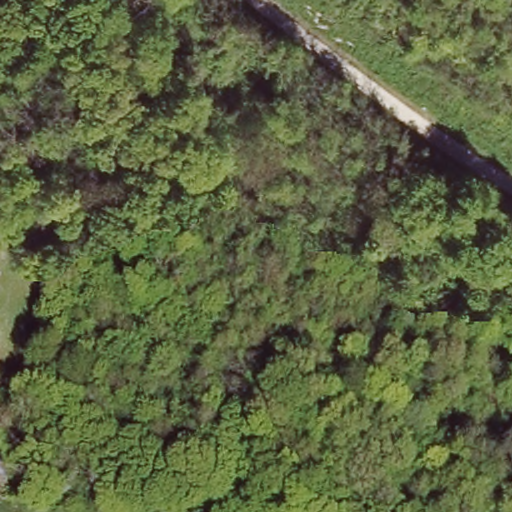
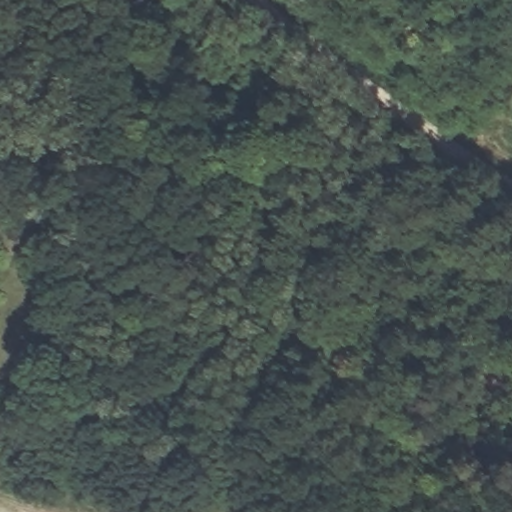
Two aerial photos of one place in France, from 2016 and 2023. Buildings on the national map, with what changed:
unchanged [(0,465),(11,466),(9,483),(0,481),(0,465)]

